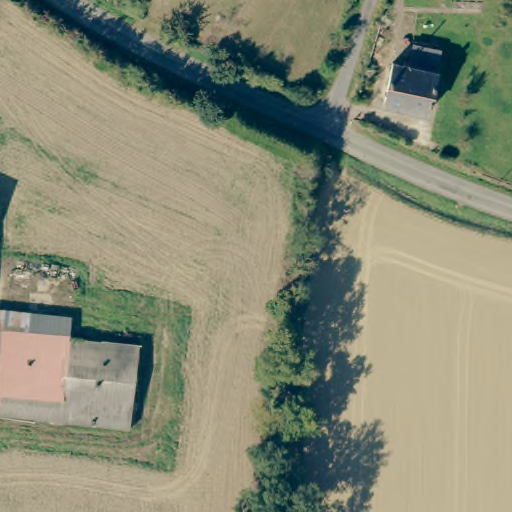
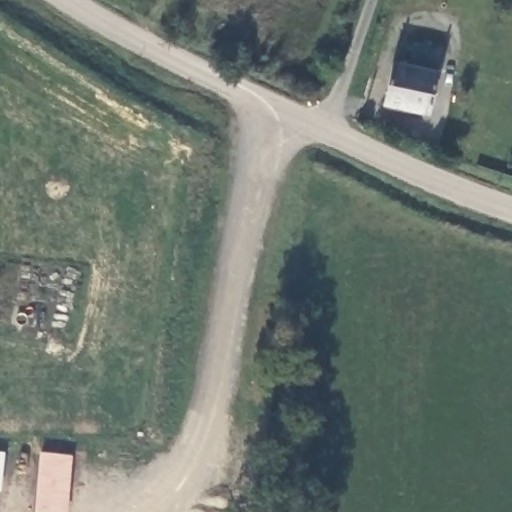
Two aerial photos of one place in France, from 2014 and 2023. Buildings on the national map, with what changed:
unchanged [(385,60),(368,54),(379,16),(402,22),(385,60)]
unchanged [(405,48),(433,54),(429,76),(420,119),(376,111),(384,71),(385,68),(400,71),(405,48)]
demolished [(132,430),(0,414),(0,333),(141,349),(132,430)]

